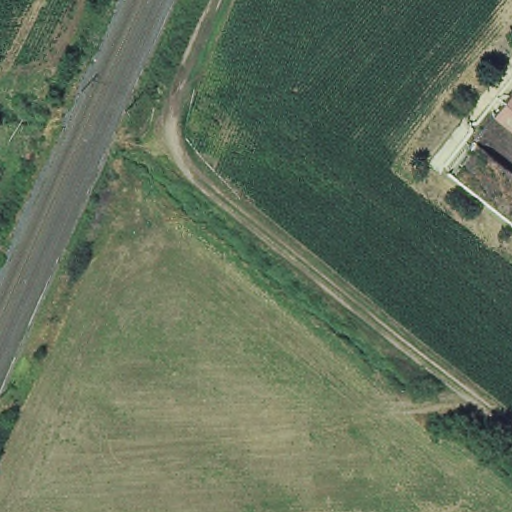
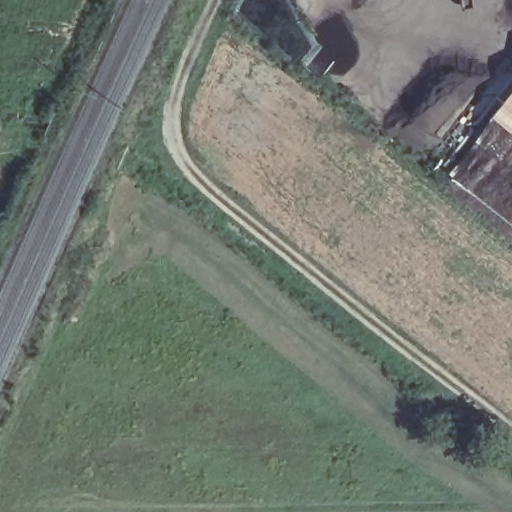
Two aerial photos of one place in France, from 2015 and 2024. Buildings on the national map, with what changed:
unchanged [(512,90),(512,136),(490,119),(512,90)]

